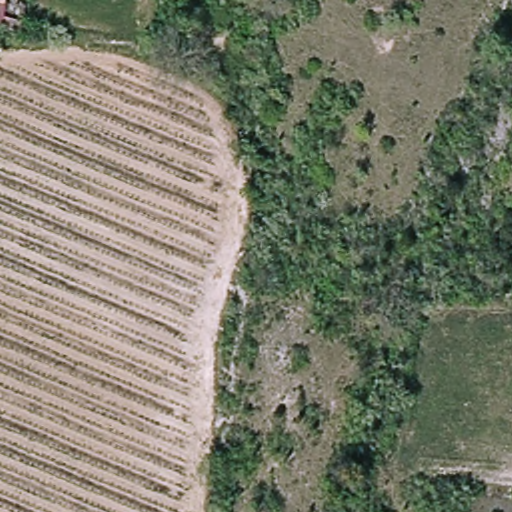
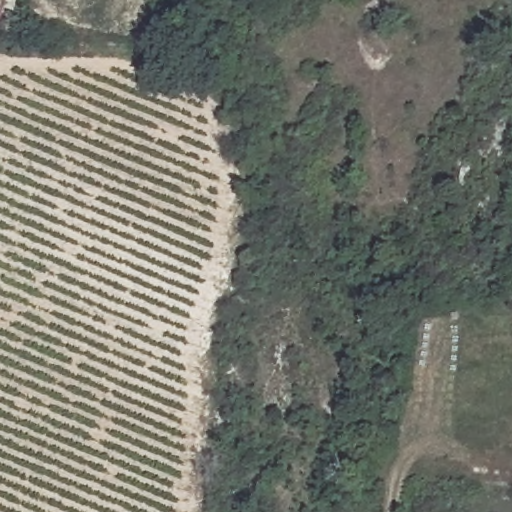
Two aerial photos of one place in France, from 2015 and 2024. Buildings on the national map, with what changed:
unchanged [(0,28),(0,0),(2,0),(0,28)]

